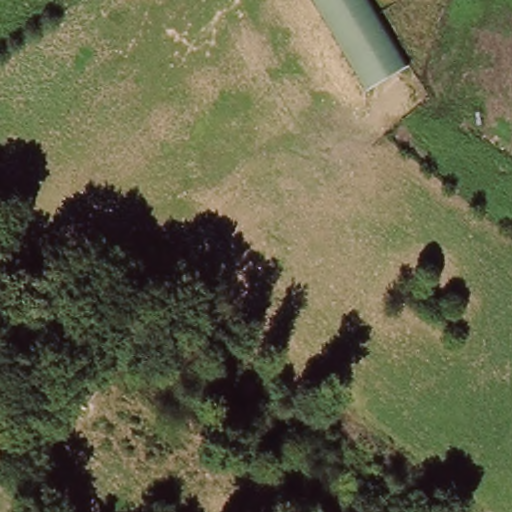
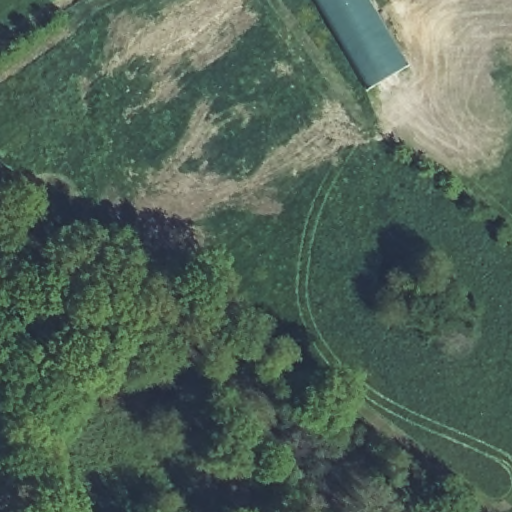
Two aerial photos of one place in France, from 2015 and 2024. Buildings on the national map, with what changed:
unchanged [(406,59),(367,81),(319,0),(368,0),(406,59)]

